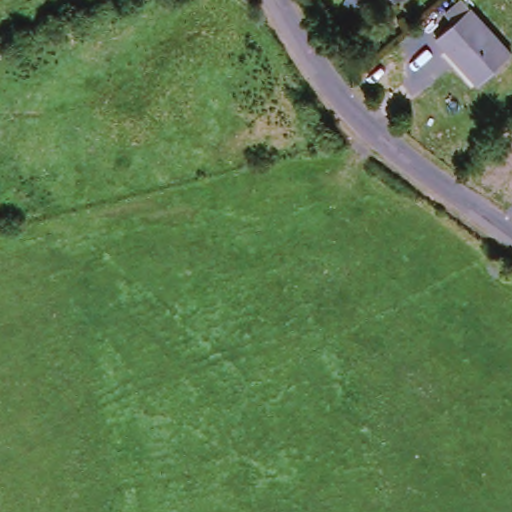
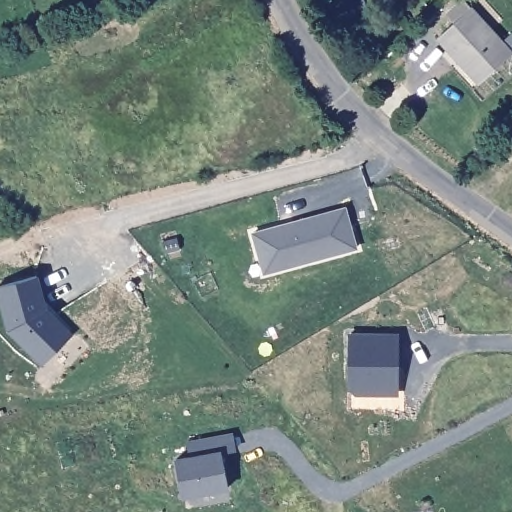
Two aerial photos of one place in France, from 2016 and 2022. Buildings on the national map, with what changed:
unchanged [(459,69),(463,65),(447,46),(442,51),(430,36),(449,19),(442,11),(456,0),(463,0),(508,52),(472,84),(459,69)]
new [(358,249),(265,274),(253,232),(346,206),(358,249)]
new [(40,281),(47,311),(72,337),(43,366),(10,331),(0,291),(40,281)]
new [(388,392),(361,405),(354,397),(355,362),(355,336),(366,337),(401,337),(400,366),(398,392),(388,392)]
new [(191,445),(235,437),(238,452),(226,455),(232,488),(189,496),(182,462),(193,460),(191,445)]

